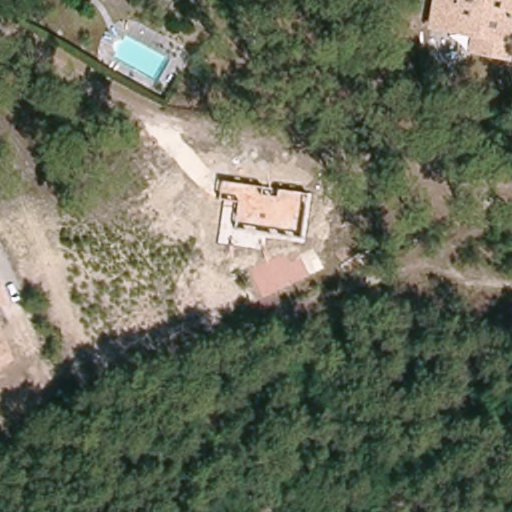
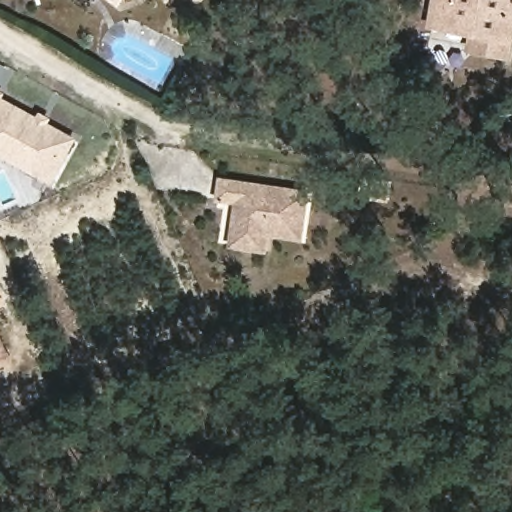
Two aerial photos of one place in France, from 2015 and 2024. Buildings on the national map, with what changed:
unchanged [(470,33),(429,26),(434,0),(512,0),(512,59),(469,51),(470,33)]
new [(0,90),(81,134),(53,185),(0,157),(0,90)]
unchanged [(299,239),(232,229),(235,200),(218,197),(221,178),(262,183),(259,192),(273,194),(274,186),(307,190),(299,239)]
demolished [(264,303),(252,268),(298,244),(304,251),(317,246),(329,271),(264,303)]
unchanged [(0,307),(0,295),(3,305),(0,307)]
unchanged [(0,368),(0,335),(13,362),(0,368)]

